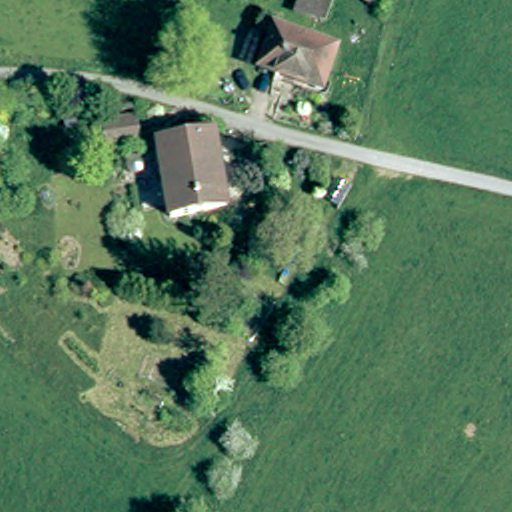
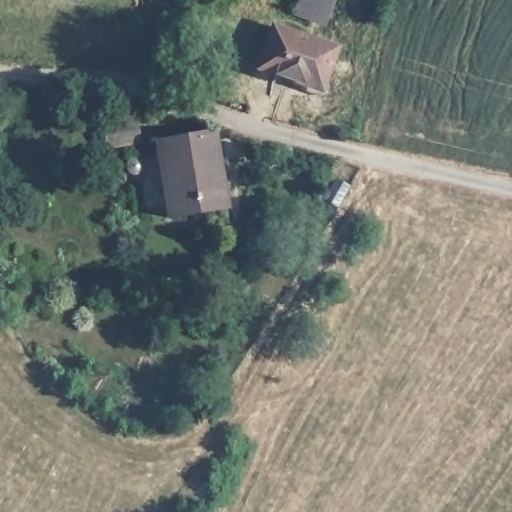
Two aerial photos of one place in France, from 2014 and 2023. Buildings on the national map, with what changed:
unchanged [(303,15),(307,0),(339,0),(332,24),(303,15)]
unchanged [(328,95),(266,74),(279,32),(341,53),(328,95)]
unchanged [(146,146),(115,155),(109,131),(138,123),(146,146)]
unchanged [(161,148),(220,138),(231,211),(173,223),(161,148)]

